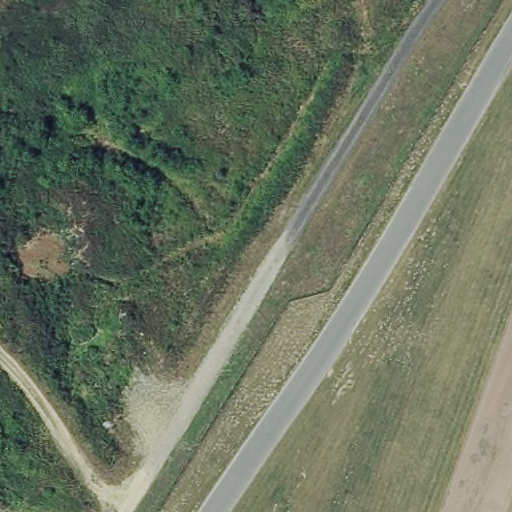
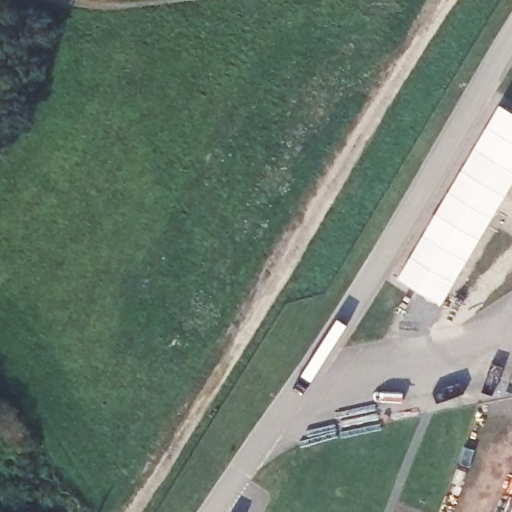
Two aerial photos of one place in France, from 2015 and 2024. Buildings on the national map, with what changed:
new [(443,303),(399,277),(500,104),(512,111),(512,184),(443,303)]

